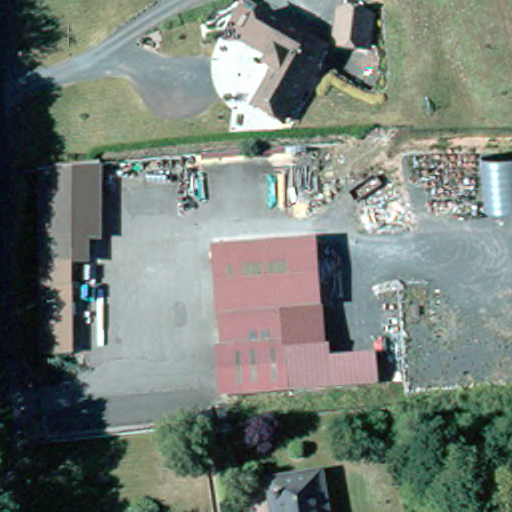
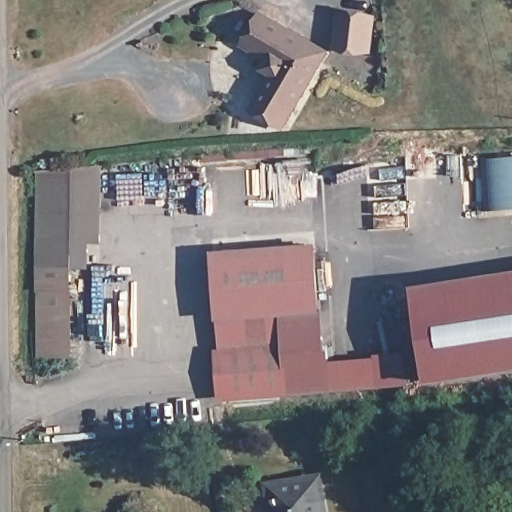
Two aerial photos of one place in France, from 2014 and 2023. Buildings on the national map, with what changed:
unchanged [(338,8),(376,12),(371,59),(334,51),(338,8)]
unchanged [(261,109),(265,103),(281,72),(275,69),(279,61),(253,45),(270,14),(334,51),(296,121),(293,128),(261,109)]
unchanged [(485,209),(481,156),(512,156),(512,207),(485,209)]
unchanged [(41,168),(103,166),(103,244),(93,245),(92,268),(79,268),(79,246),(53,246),(40,246),(41,168)]
unchanged [(47,364),(40,246),(79,246),(77,361),(47,364)]
unchanged [(215,261),(315,250),(323,306),(283,311),(285,326),(223,334),(215,261)]
new [(421,371),(413,286),(512,277),(512,362),(421,371)]
unchanged [(325,350),(330,350),(333,361),(378,356),(379,387),(291,394),(285,326),(283,311),(323,306),(325,350)]
unchanged [(291,394),(230,400),(223,334),(285,326),(291,394)]
unchanged [(326,512),(275,512),(272,483),(278,482),(321,477),(326,512)]

